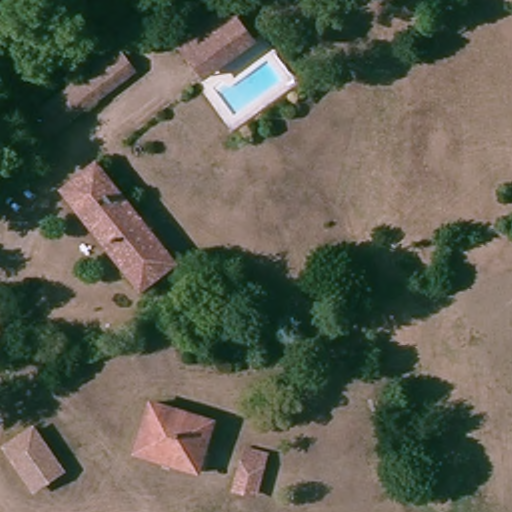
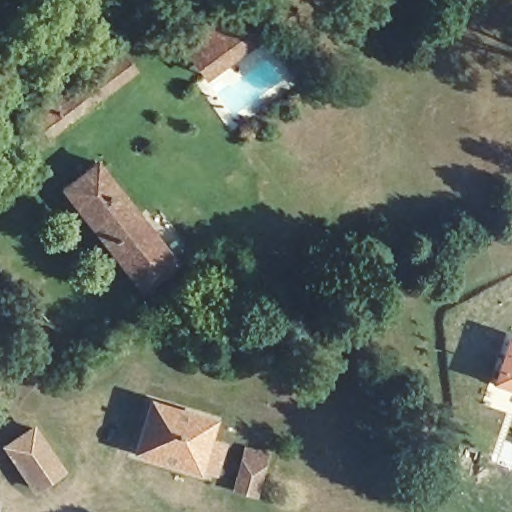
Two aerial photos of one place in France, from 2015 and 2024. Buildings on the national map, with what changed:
unchanged [(178,45),(225,7),(240,25),(192,63),(178,45)]
unchanged [(205,78),(192,63),(240,25),(252,40),(205,78)]
unchanged [(57,102),(104,60),(121,80),(61,135),(47,119),(44,115),(57,102)]
unchanged [(60,195),(100,166),(173,267),(134,295),(60,195)]
new [(512,340),(512,386),(495,380),(510,339),(512,340)]
unchanged [(210,425),(195,475),(132,456),(147,405),(210,425)]
unchanged [(39,492),(30,482),(5,454),(30,431),(55,460),(64,469),(39,492)]
unchanged [(235,462),(243,431),(260,435),(251,467),(250,471),(234,467),(235,462)]

